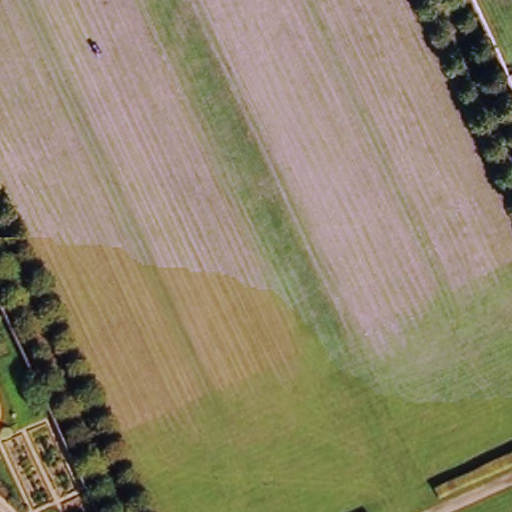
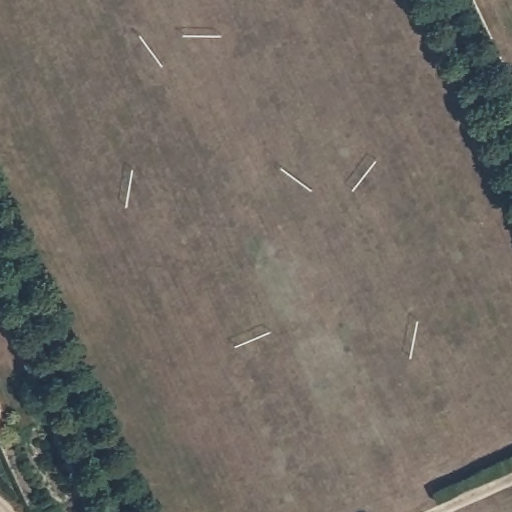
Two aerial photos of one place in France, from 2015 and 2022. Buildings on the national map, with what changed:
unchanged [(0,420),(0,412),(2,415),(0,420)]

